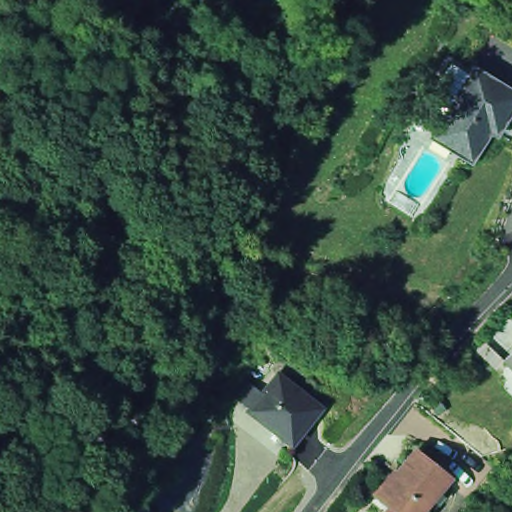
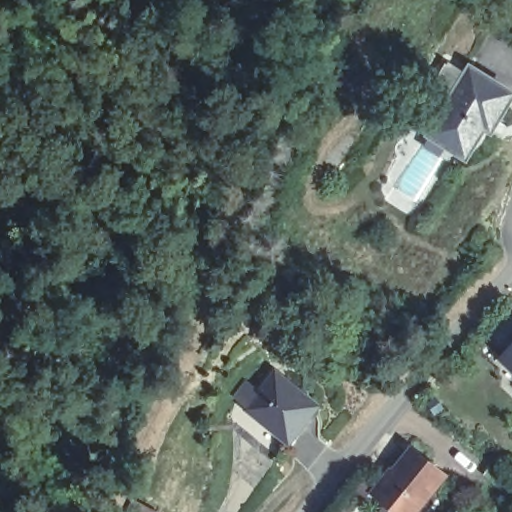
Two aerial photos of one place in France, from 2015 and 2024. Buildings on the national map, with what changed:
unchanged [(457,124),(442,114),(440,107),(464,70),(483,81),(470,104),(457,124)]
unchanged [(500,135),(492,149),(485,155),(477,157),(472,158),(465,156),(443,144),(457,124),(470,104),(483,81),(487,76),(512,91),(512,131),(507,140),(500,135)]
unchanged [(512,353),(512,365),(506,359),(512,353)]
unchanged [(250,407),(265,386),(277,370),(295,383),(293,386),(299,390),(300,388),(313,398),(321,403),(313,412),(305,422),(292,439),(259,415),(250,407)]
unchanged [(95,446),(106,433),(117,443),(105,455),(102,453),(95,446)]
unchanged [(417,512),(400,512),(378,495),(415,448),(447,474),(417,512)]
unchanged [(155,512),(126,512),(132,499),(155,512)]

